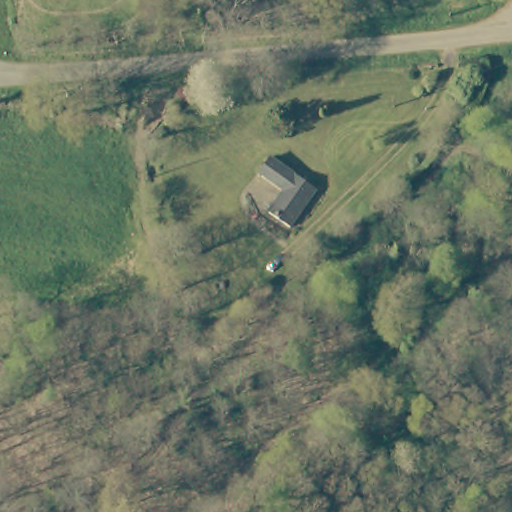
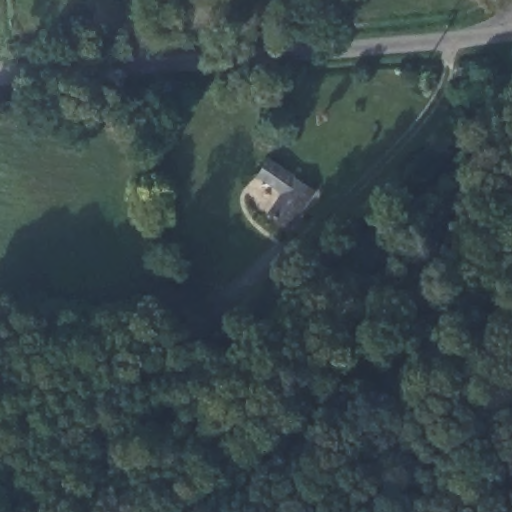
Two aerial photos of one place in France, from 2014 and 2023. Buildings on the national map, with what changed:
unchanged [(290,231),(265,213),(283,189),(263,174),(273,162),(318,195),(290,231)]

